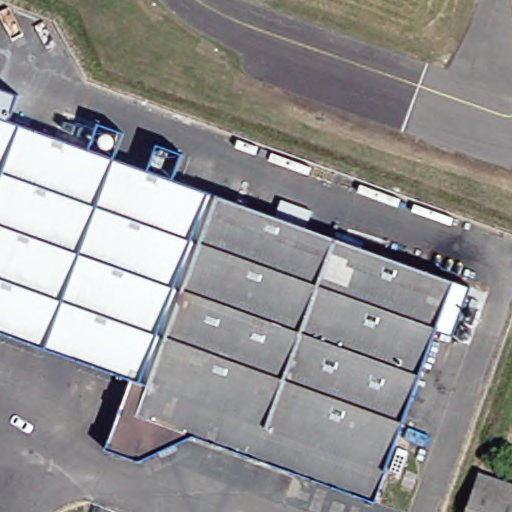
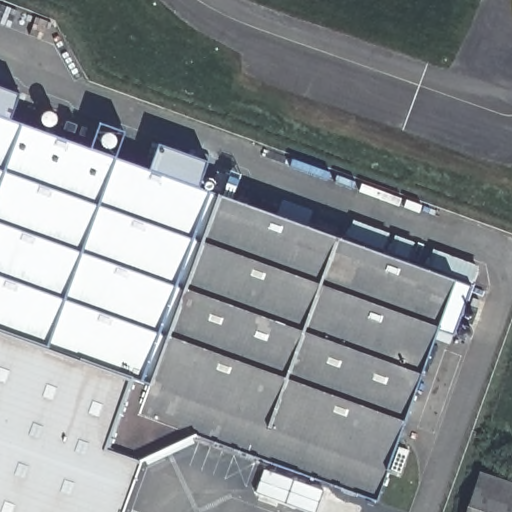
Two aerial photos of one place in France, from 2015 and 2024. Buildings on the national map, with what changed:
unchanged [(375,500),(195,435),(141,458),(108,446),(133,377),(0,329),(0,116),(219,191),(456,277),(386,472),(375,500)]
new [(352,221),(388,234),(383,248),(347,235),(352,221)]
new [(108,446),(141,458),(122,512),(0,512),(0,329),(133,377),(108,446)]
new [(323,491),(316,512),(310,512),(255,491),(264,469),(323,491)]
unchanged [(511,512),(457,512),(471,472),(512,487),(512,509),(511,512)]

